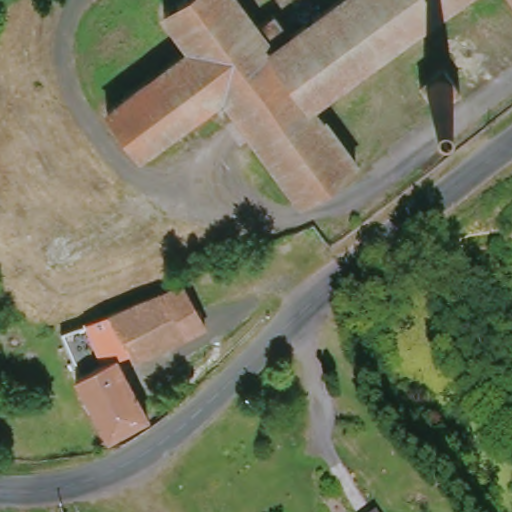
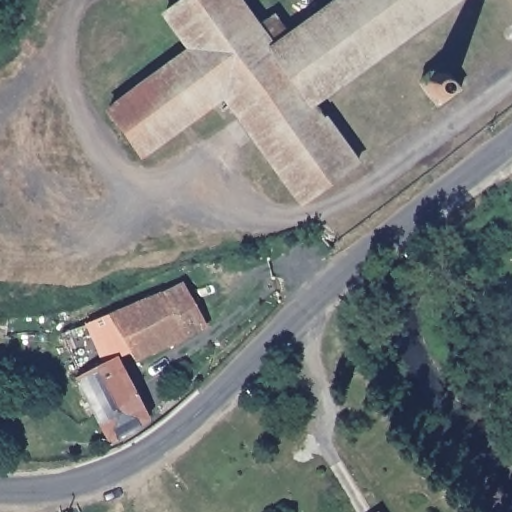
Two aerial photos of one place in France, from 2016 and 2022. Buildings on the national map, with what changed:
unchanged [(330,115),(360,159),(307,199),(228,91),(145,151),(112,107),(197,46),(169,9),(182,0),(245,0),(261,20),(280,7),(297,30),(336,0),(489,0),(330,115)]
unchanged [(168,298),(185,290),(209,332),(191,340),(139,365),(133,355),(113,320),(168,298)]
unchanged [(119,361),(83,375),(64,335),(113,320),(133,355),(119,361)]
unchanged [(112,444),(78,378),(83,375),(119,361),(150,424),(115,442),(112,444)]

